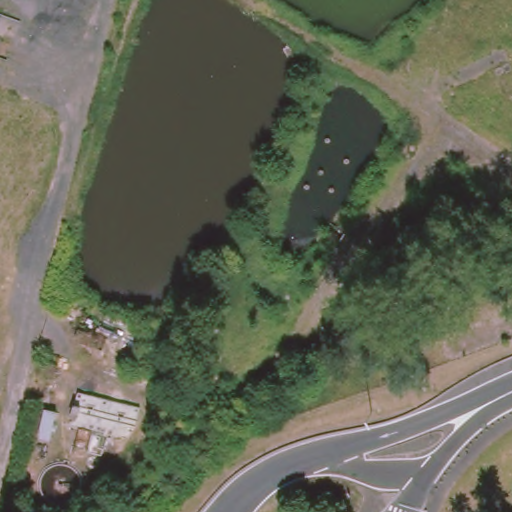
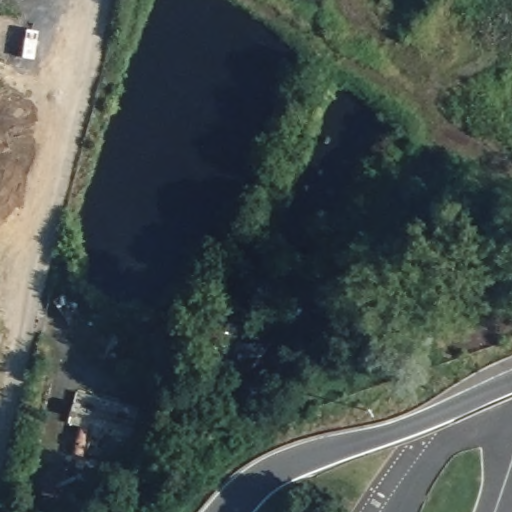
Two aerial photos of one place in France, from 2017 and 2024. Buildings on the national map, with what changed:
unchanged [(86,458),(91,437),(69,431),(78,398),(136,415),(129,449),(110,444),(108,453),(103,453),(100,464),(86,458)]

